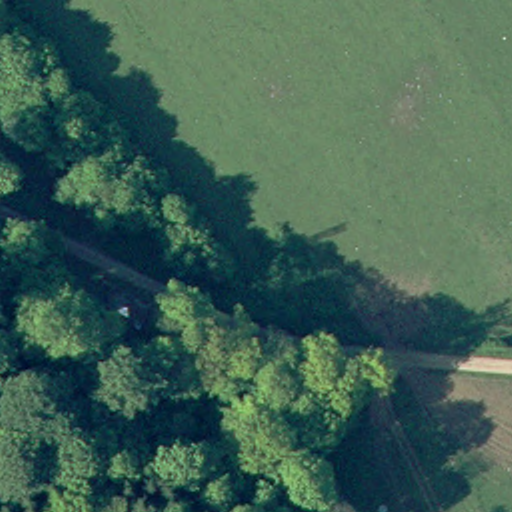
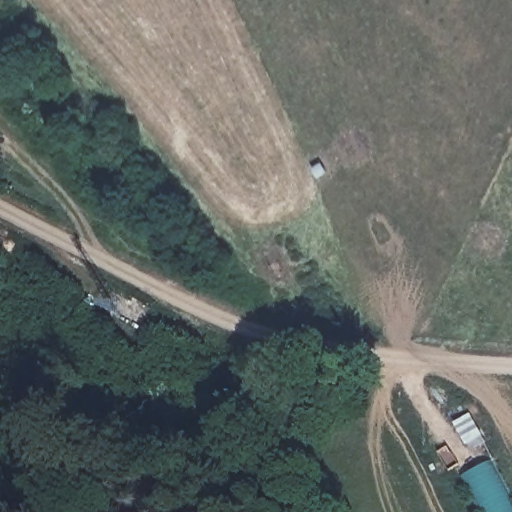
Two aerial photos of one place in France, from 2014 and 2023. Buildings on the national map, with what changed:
new [(512,512),(481,512),(462,475),(492,459),(512,496),(512,512)]

